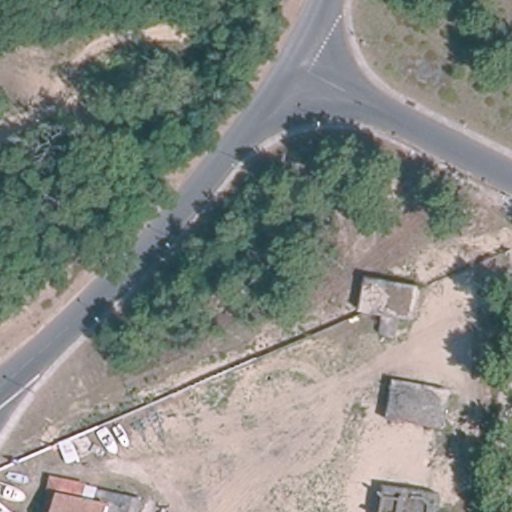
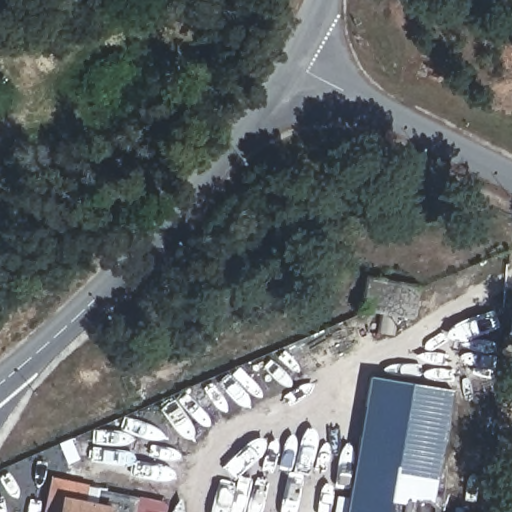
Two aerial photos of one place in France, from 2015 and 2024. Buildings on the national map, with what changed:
unchanged [(421,287),(420,287),(414,316),(370,309),(369,310),(368,309),(362,308),(368,275),(419,285),(419,287),(421,287)]
new [(392,381),(387,414),(439,422),(445,391),(450,391),(434,496),(386,489),(383,512),(345,512),(368,377),(392,381)]
new [(392,381),(445,391),(439,422),(387,414),(392,381)]
demolished [(397,384),(450,393),(444,425),(392,416),(397,384)]
unchanged [(140,512),(54,512),(61,476),(95,482),(107,485),(106,489),(143,496),(140,512)]
new [(434,496),(432,512),(383,512),(386,489),(434,496)]
demolished [(440,499),(438,512),(388,512),(391,492),(440,499)]

